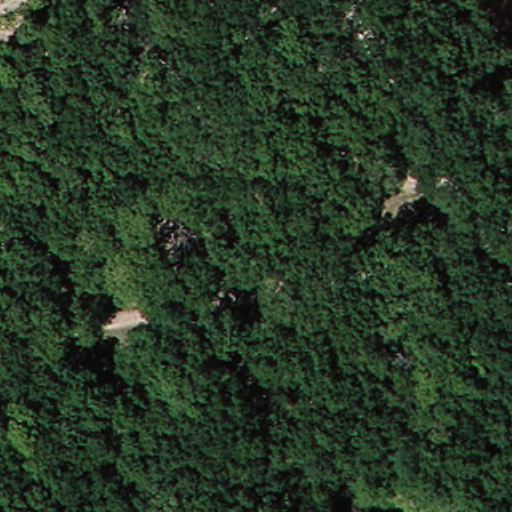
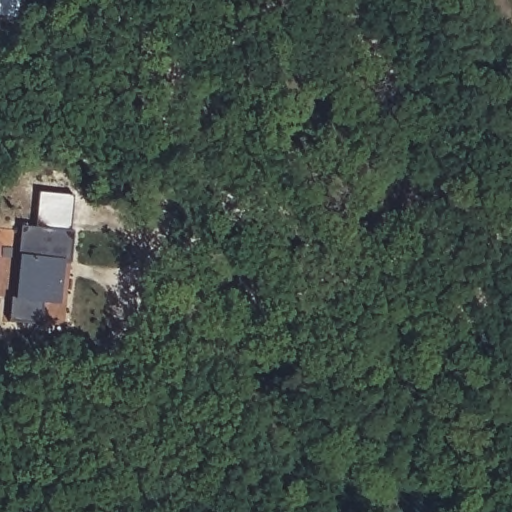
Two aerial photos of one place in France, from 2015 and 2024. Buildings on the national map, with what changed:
unchanged [(252,167),(275,187),(252,209),(230,189),(252,167)]
new [(39,194),(73,197),(64,306),(43,305),(41,325),(14,322),(22,227),(37,229),(39,194)]
unchanged [(313,235),(314,247),(300,249),(300,236),(313,235)]

